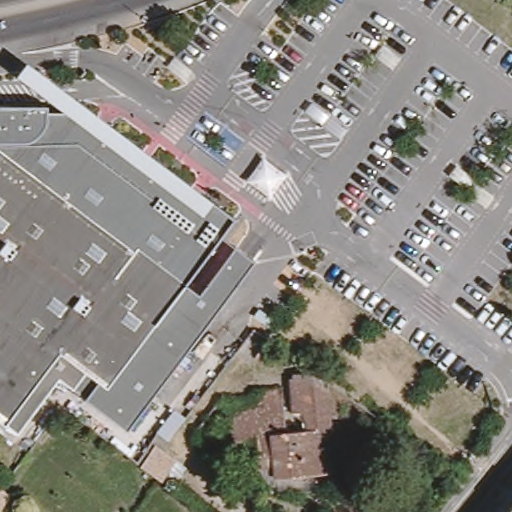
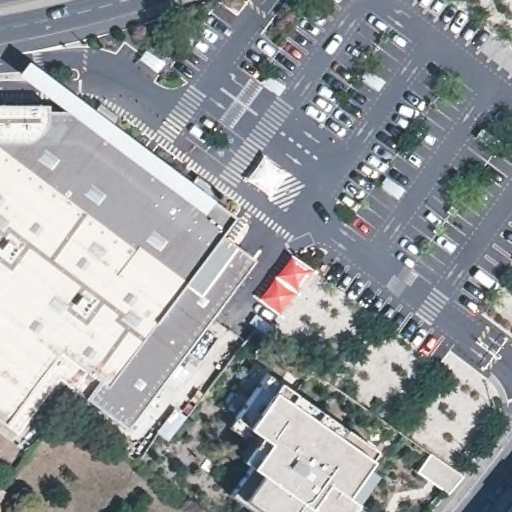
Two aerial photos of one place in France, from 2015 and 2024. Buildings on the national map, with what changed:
unchanged [(15,79),(25,64),(232,219),(182,284),(196,295),(231,248),(250,262),(121,433),(82,400),(95,381),(84,372),(73,389),(58,377),(15,438),(3,427),(0,425),(0,107),(46,106),(15,79)]
demolished [(255,329),(270,339),(251,364),(236,354),(255,329)]
demolished [(233,439),(233,399),(266,398),(265,390),(285,390),(286,416),(286,432),(310,431),(309,413),(298,414),(296,374),(319,373),(329,380),(335,471),(311,472),(275,474),(274,463),(260,464),(259,439),(233,439)]
new [(344,428),(375,451),(370,457),(345,493),(358,503),(352,512),(265,512),(245,498),(264,474),(251,465),(271,440),(249,423),(237,416),(268,373),(280,381),(344,428)]
demolished [(166,483),(157,475),(137,460),(152,440),(172,455),(182,462),(166,483)]
unchanged [(5,512),(0,508),(0,486),(1,487),(18,499),(12,512),(5,512)]
new [(507,512),(512,506),(512,512),(507,512)]

